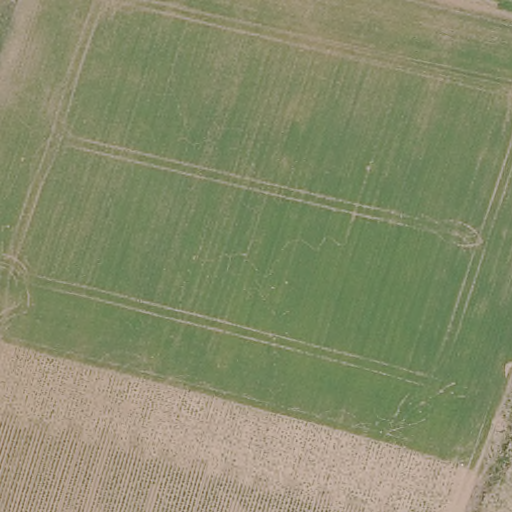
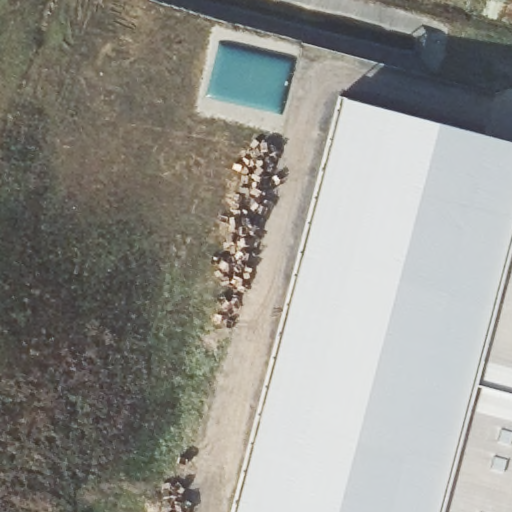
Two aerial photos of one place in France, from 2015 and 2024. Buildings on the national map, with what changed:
new [(342,95),(512,139),(512,512),(230,512),(342,95)]

